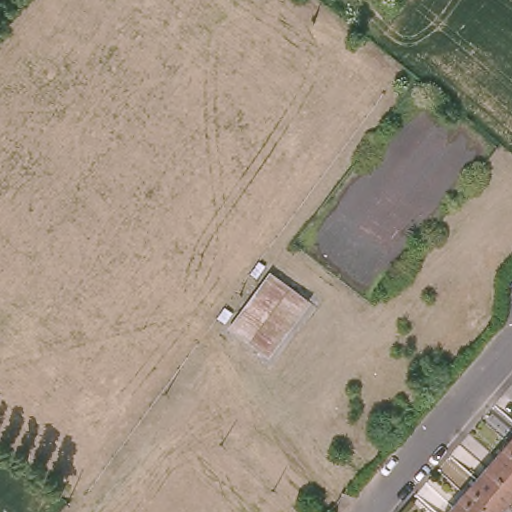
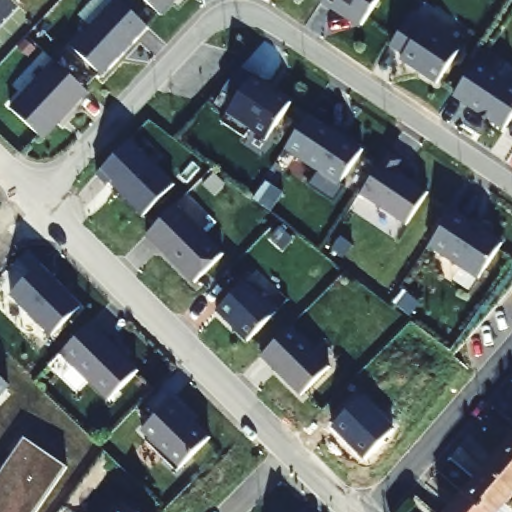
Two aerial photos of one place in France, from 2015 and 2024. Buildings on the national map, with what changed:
new [(74,42),(112,0),(125,0),(148,21),(101,69),(74,42)]
new [(161,10),(151,0),(170,0),(161,10)]
new [(363,21),(331,0),(375,0),(363,21)]
new [(440,77),(388,46),(408,16),(458,44),(440,77)]
new [(88,87),(43,135),(11,101),(56,58),(88,87)]
new [(505,125),(454,91),(477,59),(512,83),(512,113),(505,125)]
new [(289,101),(266,136),(250,124),(244,132),(223,116),(250,77),(289,101)]
new [(307,112),(359,147),(337,179),(286,144),(307,112)]
new [(176,181),(144,213),(99,167),(128,138),(176,181)]
new [(363,189),(388,151),(399,158),(392,166),(426,189),(408,219),(363,189)]
new [(223,250),(196,279),(148,229),(176,202),(223,250)]
new [(452,206),(501,239),(478,274),(430,241),(452,206)]
new [(39,262),(81,303),(52,332),(11,291),(39,262)]
demolished [(307,297),(282,330),(265,352),(236,330),(278,276),(307,297)]
new [(246,280),(274,308),(250,338),(223,305),(246,280)]
new [(91,317),(136,367),(108,397),(60,348),(91,317)]
new [(263,351),(288,325),(326,362),(299,389),(263,351)]
new [(0,397),(0,379),(9,387),(0,397)]
new [(395,429),(363,458),(331,425),(363,395),(395,429)]
new [(142,432),(172,397),(211,435),(178,468),(142,432)]
new [(35,512),(0,512),(0,473),(24,437),(66,466),(35,512)]
unchanged [(511,443),(512,442),(512,444),(511,443)]
unchanged [(489,469),(511,443),(512,444),(512,489),(489,469)]
unchanged [(512,489),(512,499),(500,512),(489,512),(468,493),(489,469),(512,489)]
unchanged [(489,512),(452,512),(468,493),(489,512)]
new [(114,512),(120,501),(136,512),(114,512)]

